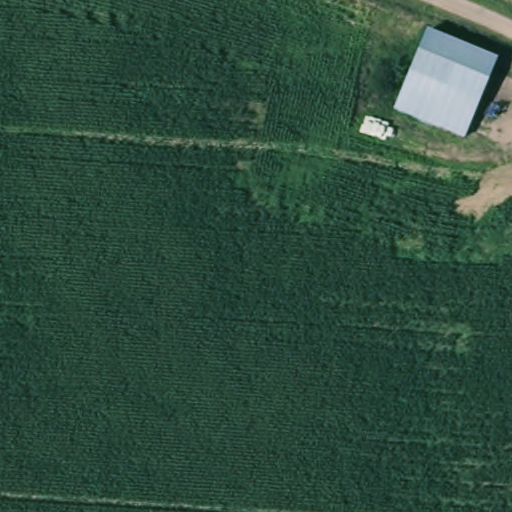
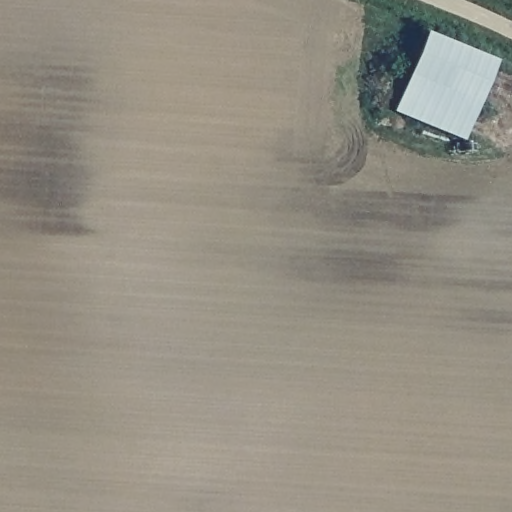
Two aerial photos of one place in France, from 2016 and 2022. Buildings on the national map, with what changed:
unchanged [(501,62),(464,140),(394,106),(432,30),(501,62)]

